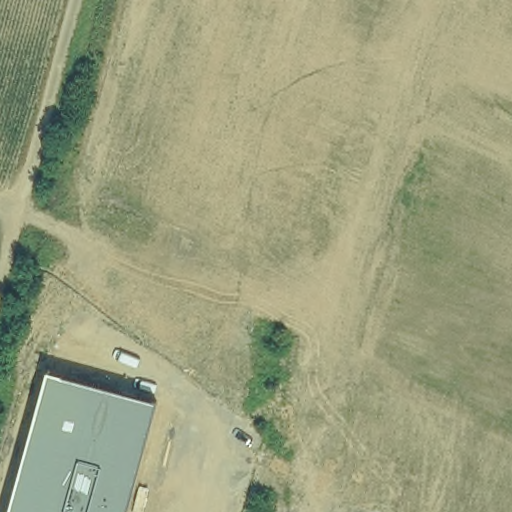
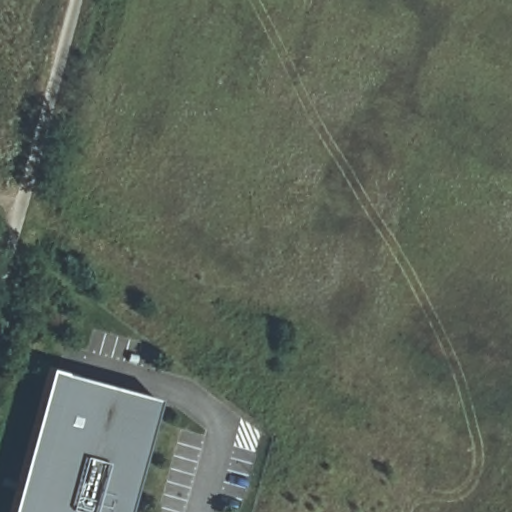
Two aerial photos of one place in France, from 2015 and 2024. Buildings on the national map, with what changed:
unchanged [(156,402),(126,512),(10,512),(49,372),(156,402)]

